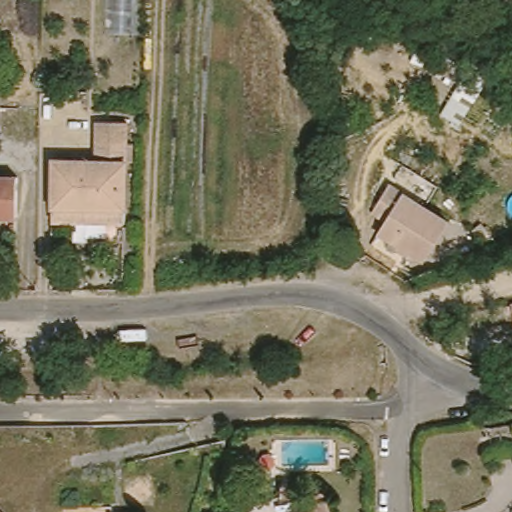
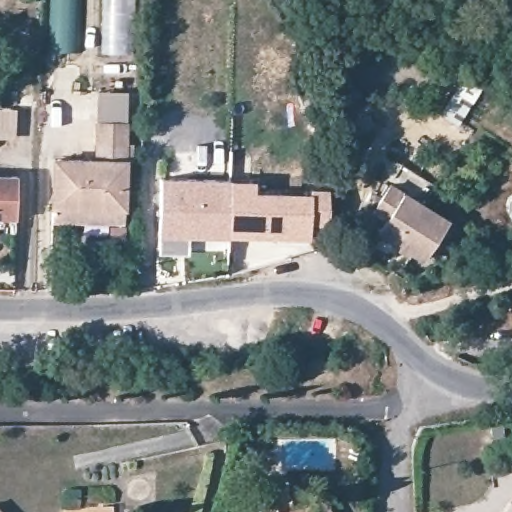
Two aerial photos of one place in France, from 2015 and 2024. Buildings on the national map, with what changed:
new [(78,0),(75,53),(50,52),(53,0),(78,0)]
unchanged [(55,217),(56,207),(58,159),(97,160),(98,123),(128,124),(124,210),(123,220),(55,217)]
unchanged [(15,220),(0,220),(0,176),(15,177),(15,220)]
new [(187,237),(187,254),(161,252),(161,179),(254,181),(254,192),(311,194),(311,189),(327,189),(327,224),(309,224),(309,239),(187,237)]
unchanged [(369,244),(375,233),(382,219),(370,211),(386,183),(448,218),(424,260),(411,253),(403,264),(369,244)]
unchanged [(512,304),(512,325),(508,305),(512,304)]
unchanged [(336,327),(336,343),(313,342),(316,324),(336,327)]
unchanged [(327,512),(312,512),(326,509),(327,512)]

